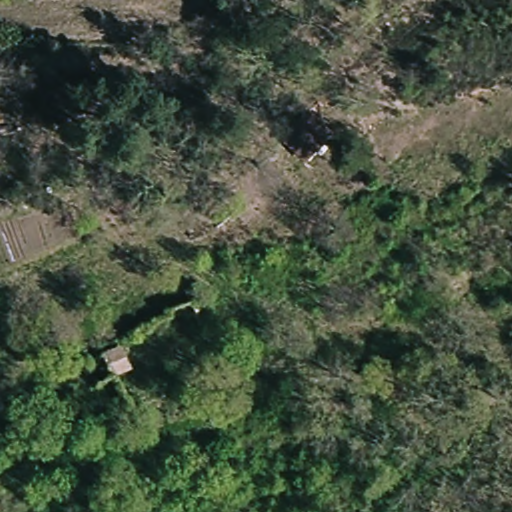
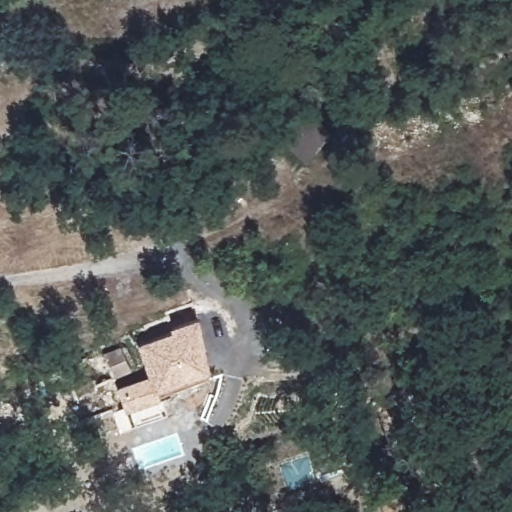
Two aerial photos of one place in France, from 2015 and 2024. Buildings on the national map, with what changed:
unchanged [(311,107),(339,135),(311,162),(282,139),(311,107)]
new [(199,318),(211,371),(158,388),(161,399),(126,412),(118,387),(150,376),(138,343),(173,331),(171,327),(199,318)]

